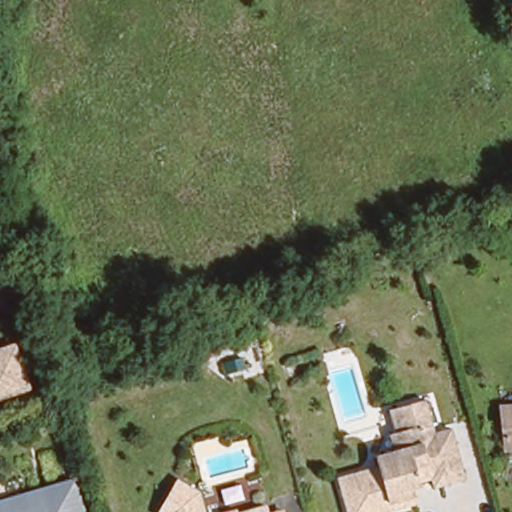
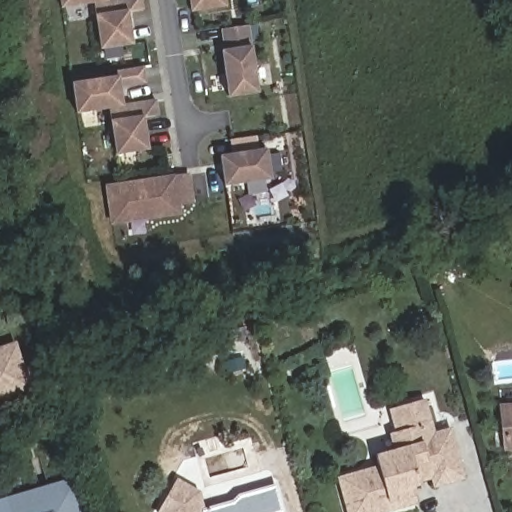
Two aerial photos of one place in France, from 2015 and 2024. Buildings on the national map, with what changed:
new [(130,12),(135,45),(101,50),(94,4),(60,9),(59,0),(142,0),(144,11),(130,12)]
new [(192,12),(190,0),(226,0),(227,7),(192,12)]
new [(229,98),(223,50),(220,30),(248,26),(252,47),(260,94),(229,98)]
new [(118,76),(117,71),(144,67),(146,84),(121,87),(125,105),(156,100),(159,117),(145,118),(150,151),(115,156),(109,109),(76,114),(71,82),(118,76)]
new [(225,187),(220,156),(233,154),(230,140),(257,136),(259,150),(268,149),(273,179),(225,187)]
new [(189,174),(194,203),(181,205),(182,214),(111,225),(104,185),(189,174)]
unchanged [(0,402),(0,348),(16,342),(32,392),(0,402)]
unchanged [(506,445),(502,402),(512,401),(512,444),(506,445)]
unchanged [(399,512),(349,512),(340,483),(380,471),(377,461),(396,455),(391,438),(397,436),(390,413),(424,403),(432,428),(434,437),(451,432),(466,480),(437,489),(434,481),(415,490),(420,506),(399,512)]
unchanged [(0,499),(73,479),(83,512),(0,512),(0,499)]
unchanged [(175,482),(196,495),(200,512),(157,512),(175,482)]
unchanged [(263,510),(263,512),(253,512),(263,510)]

